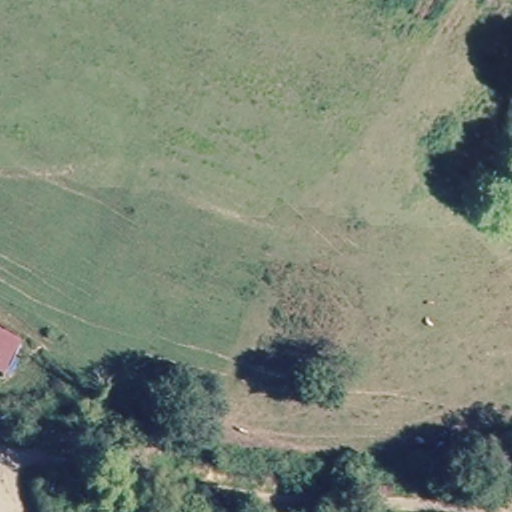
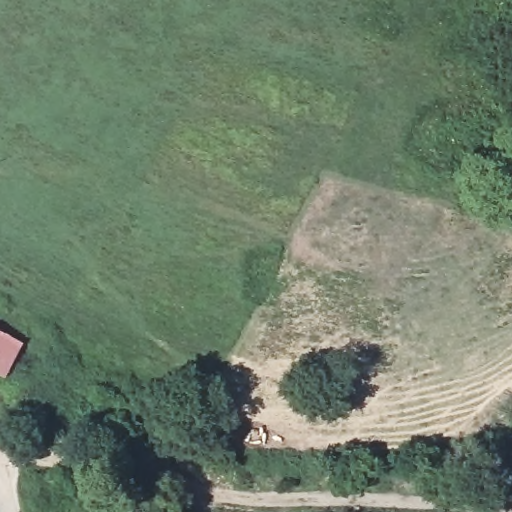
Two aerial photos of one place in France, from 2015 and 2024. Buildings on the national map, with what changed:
unchanged [(35,344),(17,379),(0,372),(0,326),(35,344)]

